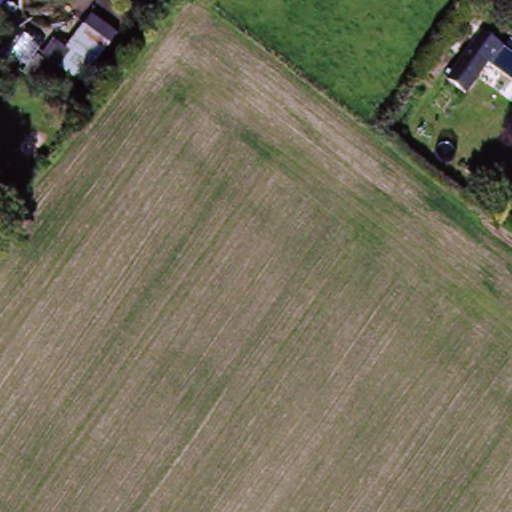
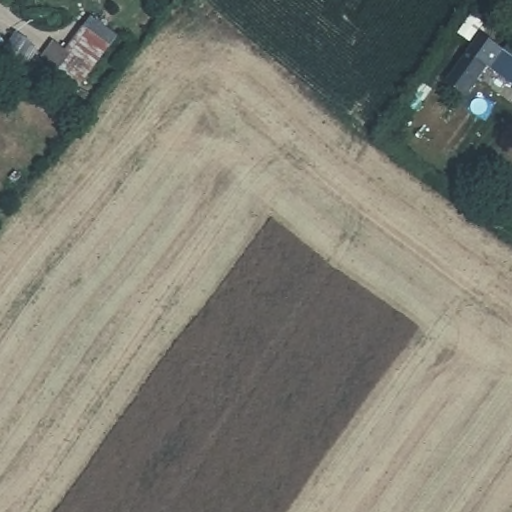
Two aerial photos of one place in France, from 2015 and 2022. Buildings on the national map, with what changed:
unchanged [(112,42),(86,84),(48,60),(57,44),(70,52),(85,26),(112,42)]
unchanged [(482,99),(467,85),(502,41),(512,49),(512,78),(504,71),(482,99)]

